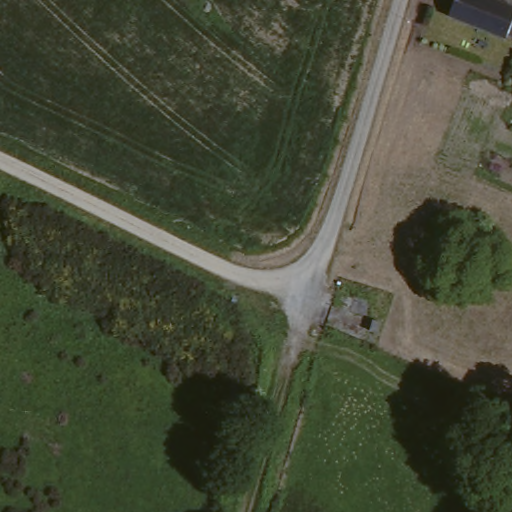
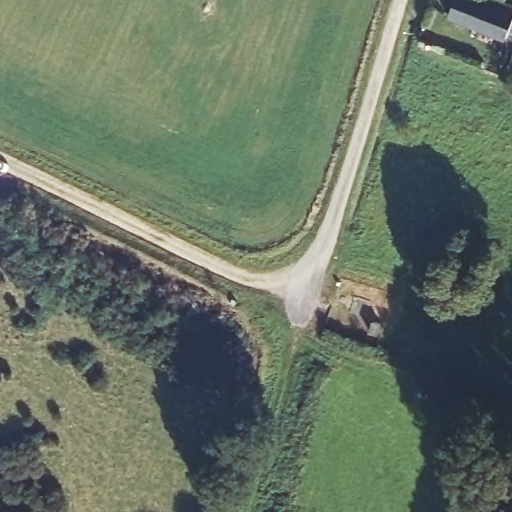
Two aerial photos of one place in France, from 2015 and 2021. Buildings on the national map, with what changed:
unchanged [(511,32),(509,36),(451,16),(457,0),(505,0),(512,2),(512,33),(511,32)]

